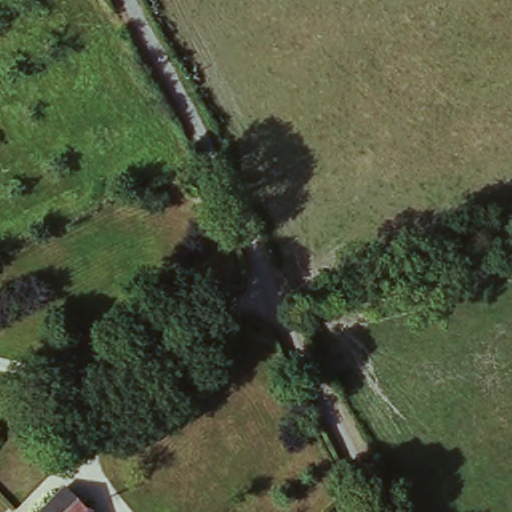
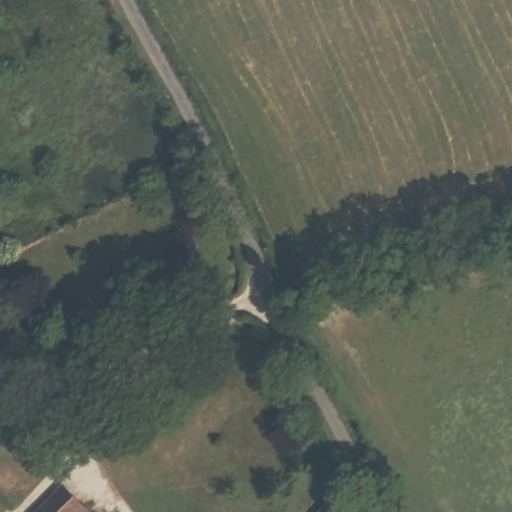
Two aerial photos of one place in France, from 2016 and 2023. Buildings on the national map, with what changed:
unchanged [(90,512),(41,512),(64,488),(90,512)]

